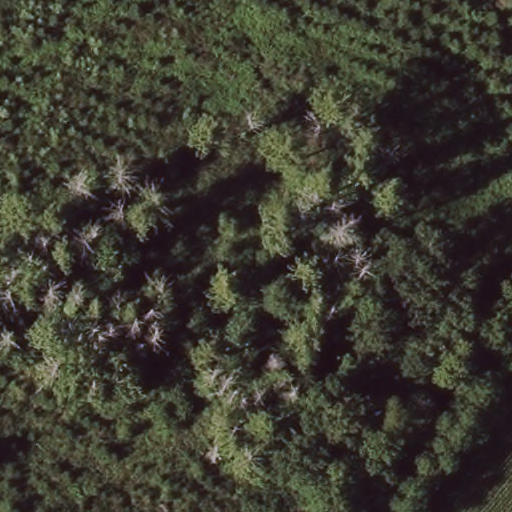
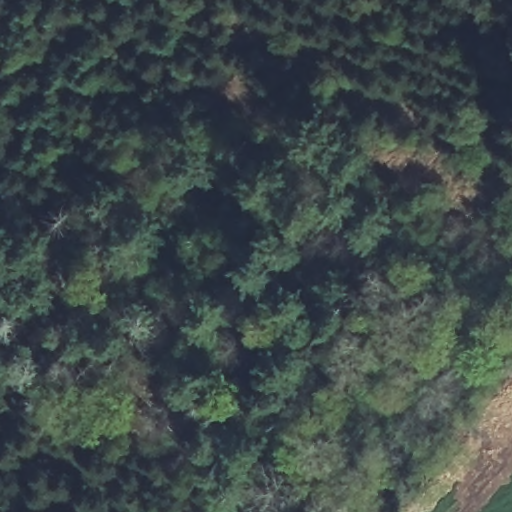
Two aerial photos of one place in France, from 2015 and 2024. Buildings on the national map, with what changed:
[]

